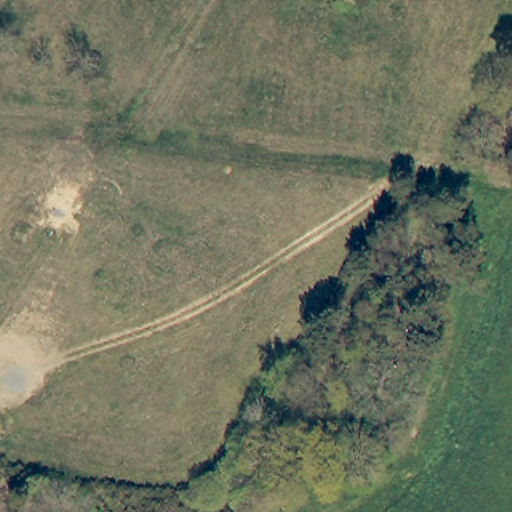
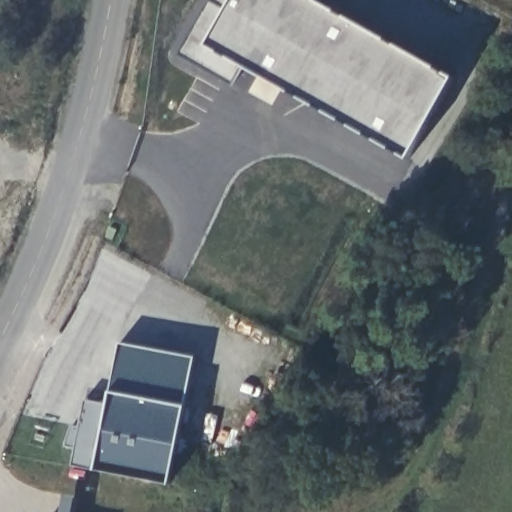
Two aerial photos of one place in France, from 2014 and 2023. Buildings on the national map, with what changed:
new [(411,158),(247,67),(232,86),(180,55),(211,0),(317,0),(456,77),(411,158)]
new [(187,406),(111,391),(119,343),(196,357),(187,406)]
new [(172,484),(97,470),(74,466),(77,448),(66,446),(73,425),(81,427),(86,400),(109,406),(111,391),(187,406),(172,484)]

